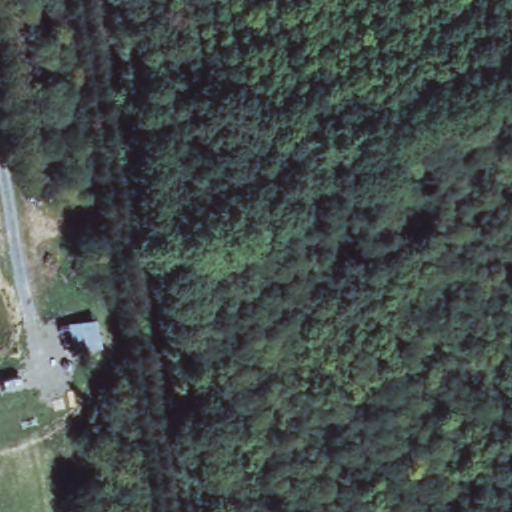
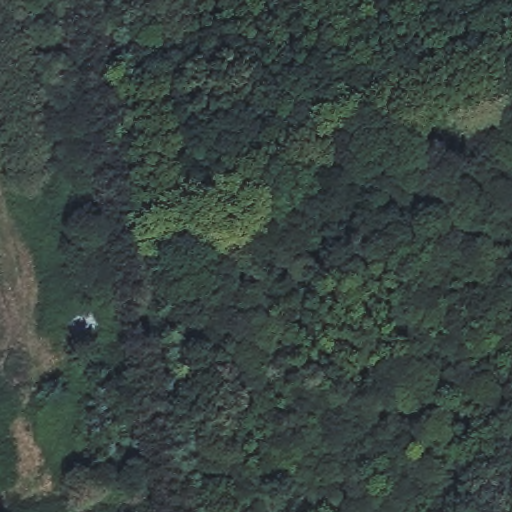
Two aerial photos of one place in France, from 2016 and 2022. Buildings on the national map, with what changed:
unchanged [(96,318),(101,348),(74,355),(68,323),(96,318)]

